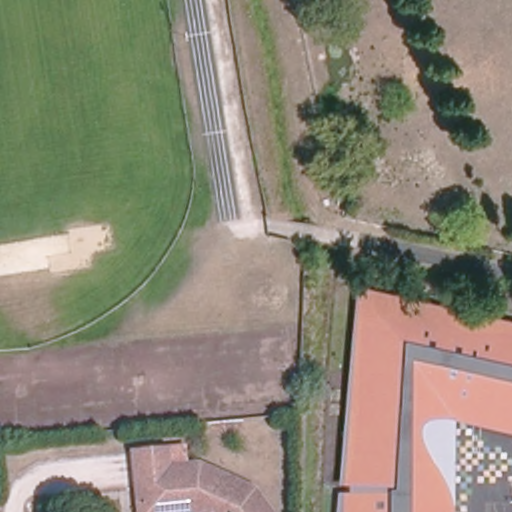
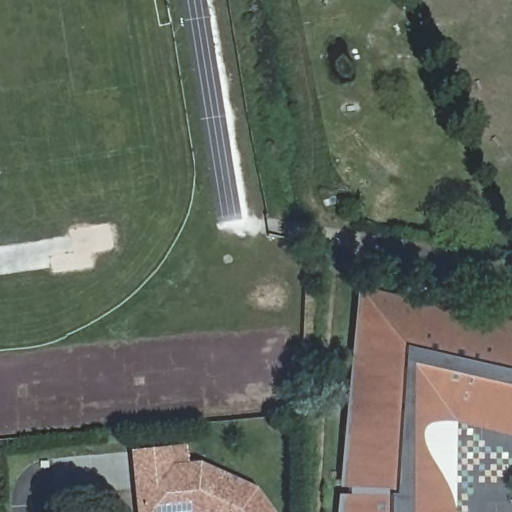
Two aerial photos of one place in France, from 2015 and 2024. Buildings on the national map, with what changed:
unchanged [(337,486),(354,287),(512,322),(512,436),(453,422),(452,512),(334,512),(337,486)]
unchanged [(168,487),(134,491),(130,453),(164,449),(166,467),(168,487)]
unchanged [(268,512),(202,512),(189,507),(156,509),(156,502),(135,504),(134,491),(168,487),(166,467),(197,464),(251,489),(268,512)]

